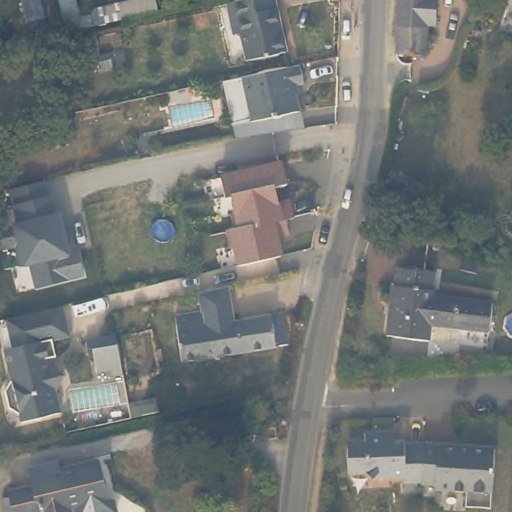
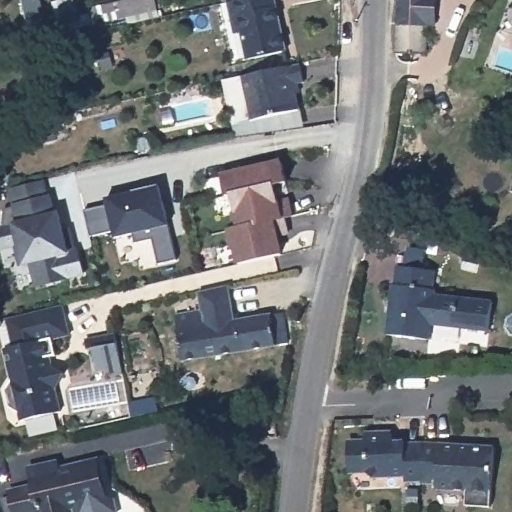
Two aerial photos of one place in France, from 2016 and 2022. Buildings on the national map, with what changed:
unchanged [(48,17),(31,21),(26,0),(44,0),(48,17)]
unchanged [(80,15),(91,13),(93,8),(128,0),(156,0),(158,10),(90,25),(65,31),(58,0),(77,0),(80,15)]
unchanged [(277,3),(286,49),(247,56),(241,26),(234,27),(229,0),(271,0),(272,4),(277,3)]
unchanged [(436,23),(428,23),(427,50),(399,51),(399,22),(399,0),(437,0),(436,23)]
unchanged [(302,86),(293,88),(297,113),(248,122),(239,78),(299,67),(302,86)]
unchanged [(149,137),(151,147),(139,149),(137,139),(149,137)]
unchanged [(278,162),(283,183),(271,185),(275,203),(287,201),(291,216),(282,218),(286,233),(274,236),(279,255),(251,261),(237,265),(232,246),(229,246),(225,231),(234,229),(230,214),(233,213),(229,195),(224,197),(219,176),(278,162)]
unchanged [(84,275),(35,288),(30,264),(24,266),(19,246),(3,250),(5,210),(24,206),(20,186),(47,180),(55,212),(60,211),(70,256),(79,253),(84,275)]
new [(106,205),(105,196),(159,185),(168,226),(176,259),(159,263),(153,239),(135,242),(133,234),(114,238),(112,230),(90,235),(85,208),(106,205)]
unchanged [(387,331),(395,282),(398,282),(401,264),(438,270),(435,288),(437,288),(437,293),(495,303),(490,331),(432,322),(430,338),(387,331)]
unchanged [(203,310),(200,291),(229,285),(232,305),(234,319),(284,312),(287,330),(274,332),(276,344),(182,360),(175,315),(203,310)]
unchanged [(63,306),(70,336),(53,340),(57,356),(49,358),(51,366),(65,375),(56,390),(61,413),(22,422),(20,415),(10,408),(6,390),(12,380),(5,350),(21,346),(14,317),(63,306)]
unchanged [(122,373),(109,375),(108,368),(96,371),(92,348),(86,349),(85,339),(115,334),(122,373)]
unchanged [(427,476),(411,475),(410,470),(376,468),(369,461),(359,461),(354,456),(354,435),(361,431),(372,431),(372,423),(393,424),(400,432),(400,435),(410,435),(411,437),(429,439),(427,476)]
unchanged [(473,441),(498,442),(495,502),(472,501),(473,486),(441,484),(441,479),(427,478),(427,476),(429,439),(461,440),(473,441)]
unchanged [(21,490),(19,482),(42,476),(39,468),(96,455),(105,491),(113,494),(117,510),(114,512),(19,512),(14,492),(21,490)]

